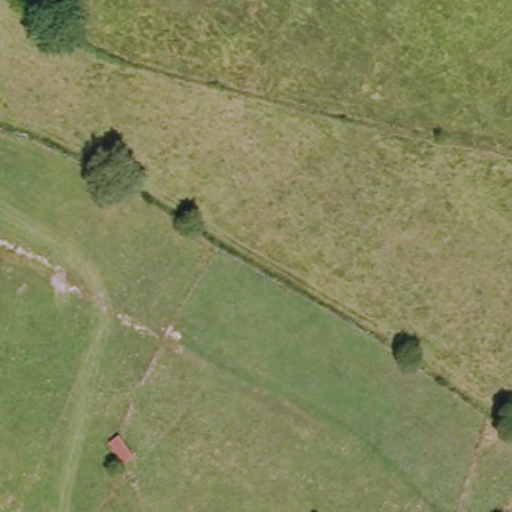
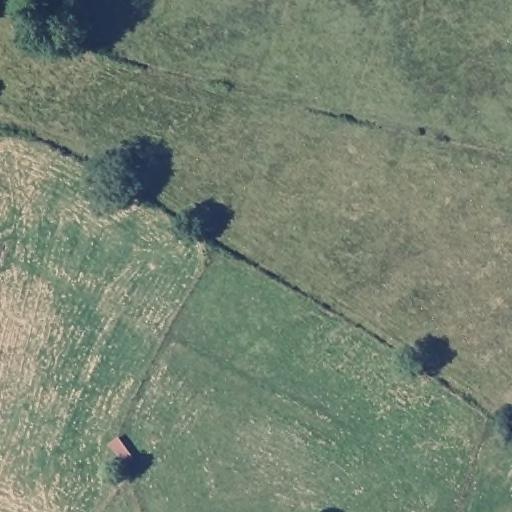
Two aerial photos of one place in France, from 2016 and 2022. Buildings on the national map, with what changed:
unchanged [(116,467),(102,438),(114,432),(133,460),(116,467)]

